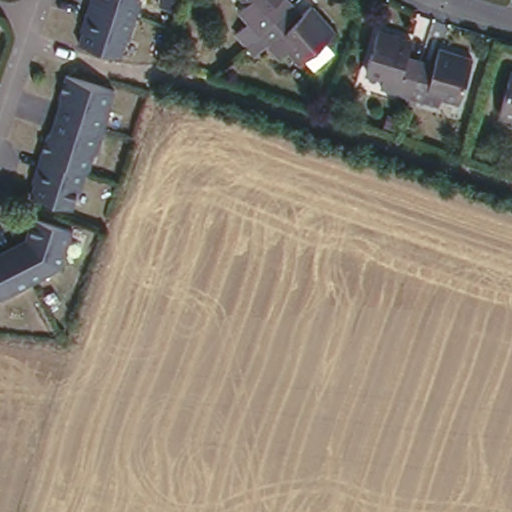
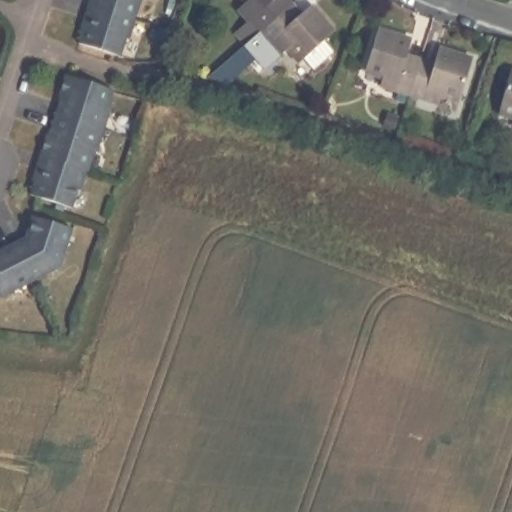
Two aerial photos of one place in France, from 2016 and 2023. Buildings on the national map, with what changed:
unchanged [(131,29),(127,27),(121,49),(76,34),(87,0),(142,0),(131,29)]
unchanged [(245,45),(233,31),(248,19),(238,10),(247,1),(246,0),(295,0),(245,45)]
unchanged [(295,0),(297,0),(305,10),(313,4),(336,30),(326,40),(336,51),(314,70),(304,57),(300,60),(292,50),(281,58),(270,45),(255,57),(245,45),(295,0)]
unchanged [(378,82),(383,69),(362,63),(377,20),(413,31),(405,52),(423,58),(411,93),(378,82)]
unchanged [(433,61),(440,40),(472,51),(459,94),(447,89),(443,102),(411,93),(423,58),(433,61)]
unchanged [(511,109),(496,105),(511,62),(512,62),(512,123),(507,121),(511,109)]
unchanged [(43,150),(37,149),(46,124),(50,125),(61,93),(56,91),(64,70),(112,84),(104,105),(107,107),(96,140),(94,137),(74,200),(31,185),(43,150)]
unchanged [(26,234),(27,229),(23,226),(30,211),(69,225),(57,260),(3,291),(0,290),(0,249),(26,234)]

